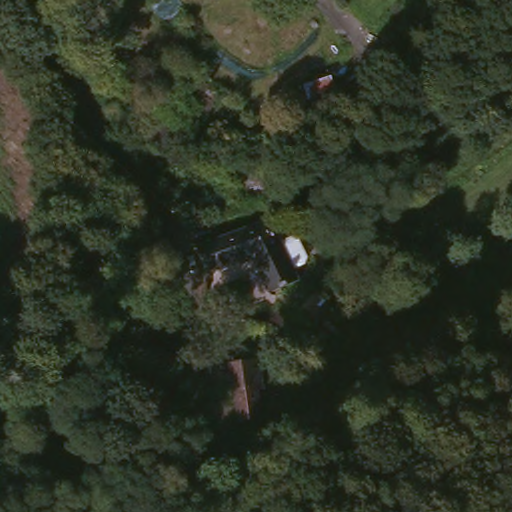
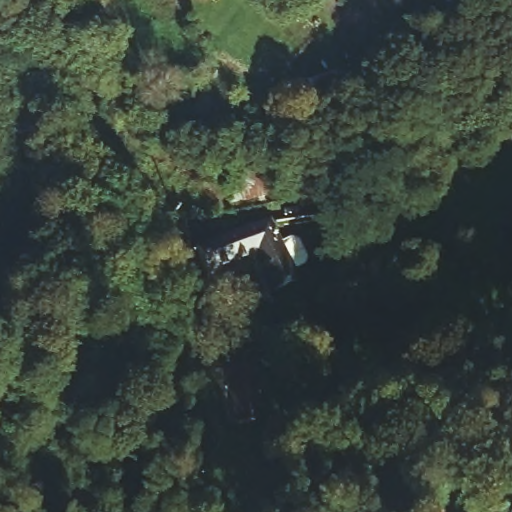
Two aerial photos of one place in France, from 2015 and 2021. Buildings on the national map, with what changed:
unchanged [(327,74),(340,100),(313,114),(300,86),(327,74)]
unchanged [(293,180),(296,207),(228,218),(227,190),(293,180)]
unchanged [(277,236),(293,231),(302,259),(285,264),(288,275),(283,277),(260,286),(247,256),(237,259),(214,266),(210,267),(201,270),(191,245),(271,218),(277,236)]
unchanged [(257,360),(270,420),(241,425),(230,362),(256,359),(257,360)]

